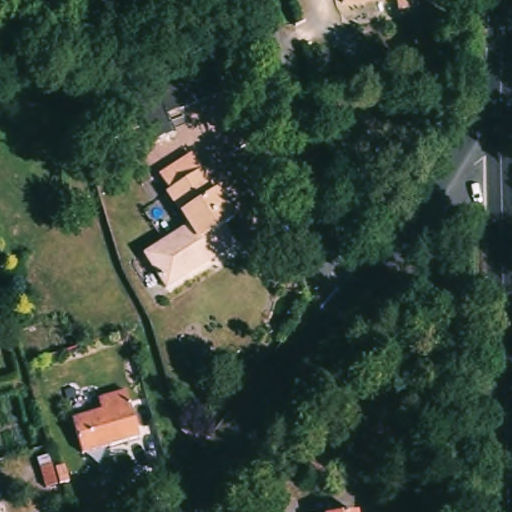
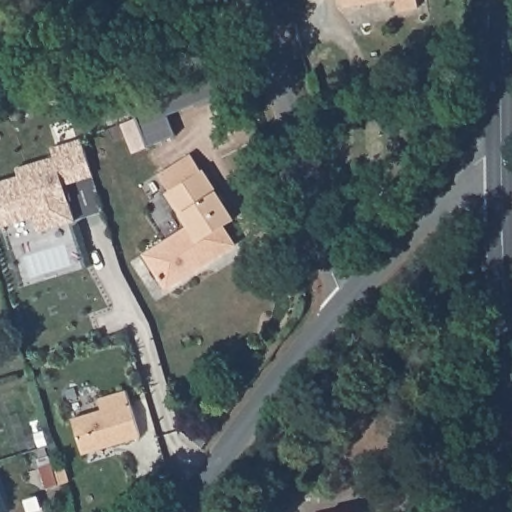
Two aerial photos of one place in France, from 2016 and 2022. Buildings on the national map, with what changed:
unchanged [(343,0),(364,0),(343,4),(343,0)]
unchanged [(396,10),(395,0),(415,0),(416,7),(396,10)]
unchanged [(226,92),(172,113),(180,133),(150,144),(132,97),(130,91),(156,81),(165,78),(167,83),(224,61),(230,59),(239,84),(231,88),(226,89),(226,92)]
new [(17,170),(55,159),(53,150),(83,141),(94,179),(65,187),(75,224),(39,234),(34,219),(0,229),(0,228),(0,184),(20,178),(17,170)]
unchanged [(171,167),(189,155),(200,172),(201,171),(232,219),(224,225),(235,244),(167,288),(146,255),(187,229),(165,194),(154,178),(171,167)]
unchanged [(54,349),(26,358),(18,329),(46,322),(54,349)]
unchanged [(140,437),(84,453),(74,418),(102,409),(99,399),(127,391),(140,437)]
unchanged [(65,466),(70,481),(60,484),(55,469),(65,466)]

